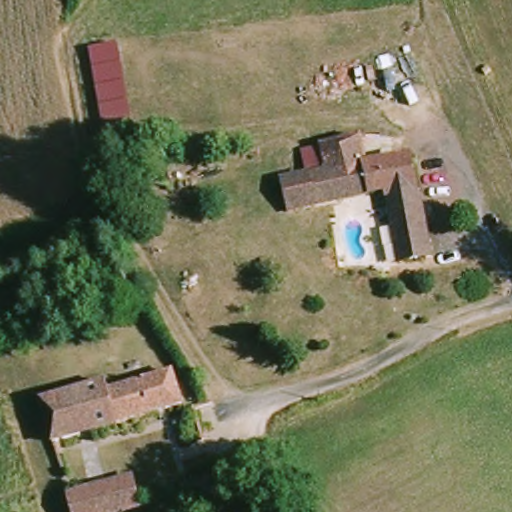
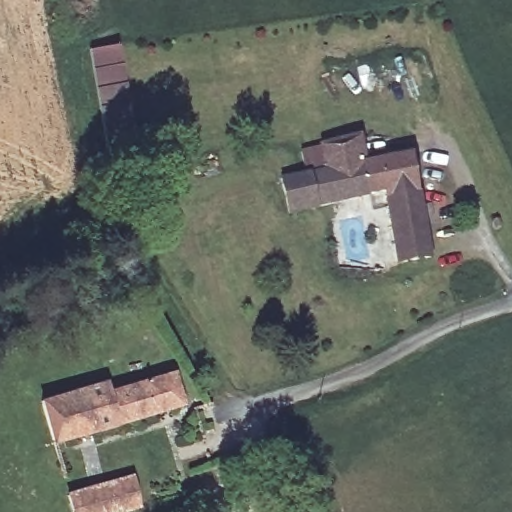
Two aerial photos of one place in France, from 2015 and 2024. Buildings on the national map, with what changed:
unchanged [(117,47),(133,140),(104,146),(88,51),(117,47)]
unchanged [(390,223),(386,197),(289,218),(278,184),(298,181),(291,156),(354,141),(363,169),(381,166),(408,161),(413,193),(417,219),(425,264),(397,269),(390,223)]
unchanged [(45,401),(114,380),(117,387),(173,371),(182,404),(57,442),(45,401)]
unchanged [(139,500),(100,512),(70,512),(65,497),(110,483),(113,492),(134,485),(139,500)]

